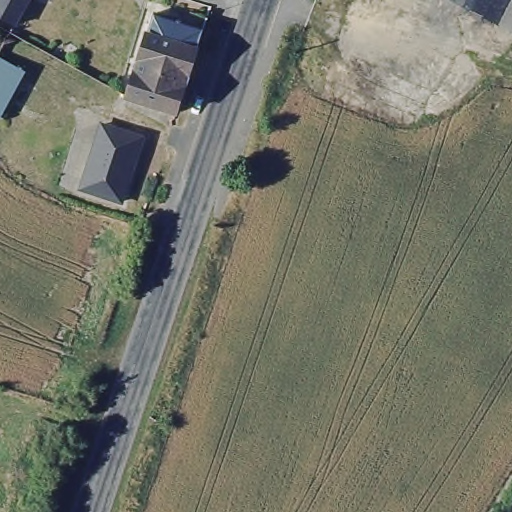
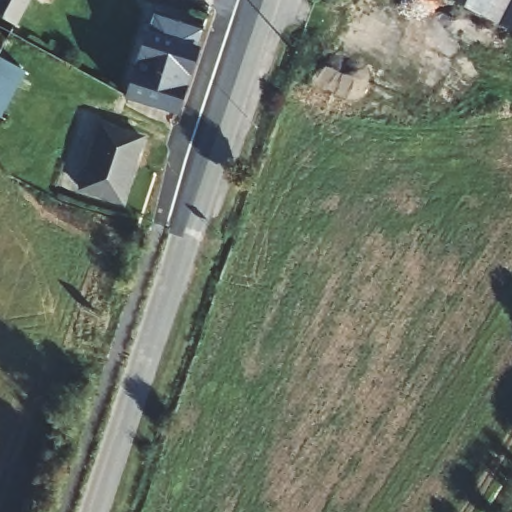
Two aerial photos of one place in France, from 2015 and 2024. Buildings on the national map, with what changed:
unchanged [(0,15),(0,0),(25,0),(13,22),(0,15)]
unchanged [(455,0),(494,0),(487,17),(455,0)]
unchanged [(487,17),(494,0),(512,0),(512,29),(487,17)]
unchanged [(180,112),(131,96),(157,12),(208,29),(180,112)]
unchanged [(5,116),(0,114),(0,55),(30,71),(5,116)]
unchanged [(146,136),(137,162),(135,162),(132,170),(135,171),(125,201),(84,187),(105,123),(146,136)]

